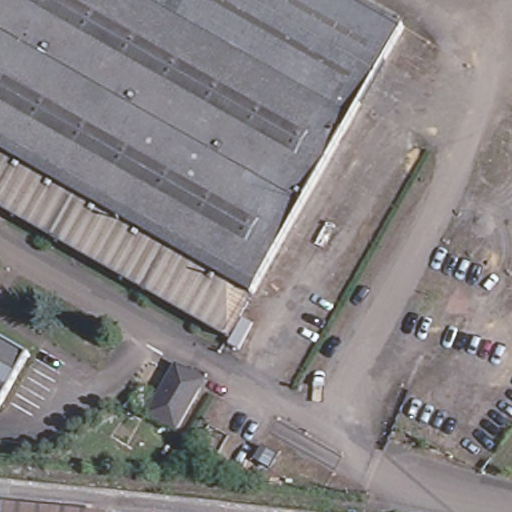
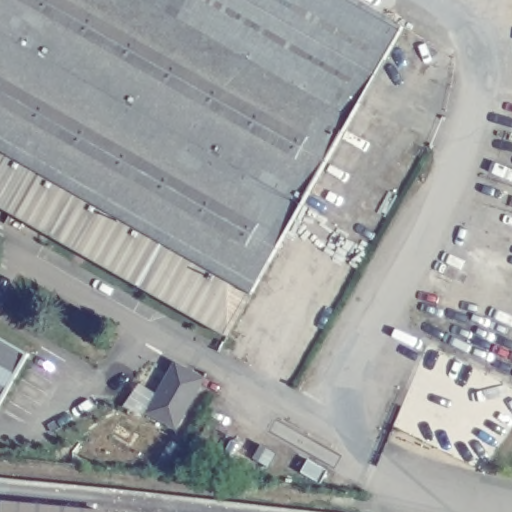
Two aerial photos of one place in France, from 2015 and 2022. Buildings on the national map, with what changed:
unchanged [(405,26),(225,333),(0,206),(0,0),(357,0),(405,26)]
unchanged [(26,353),(0,397),(0,339),(26,353)]
unchanged [(201,376),(173,425),(145,409),(174,360),(201,376)]
unchanged [(94,508),(94,512),(0,512),(0,507),(1,498),(94,508)]

